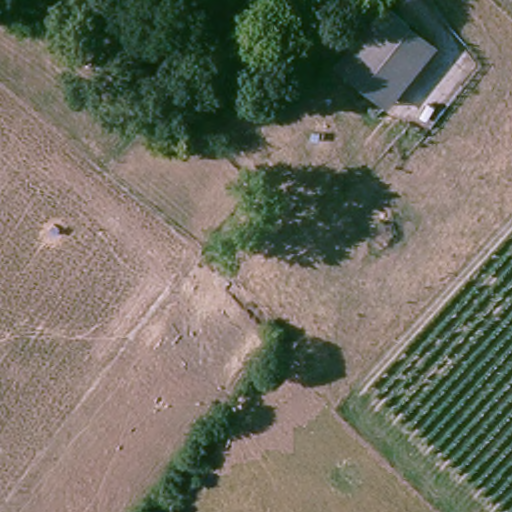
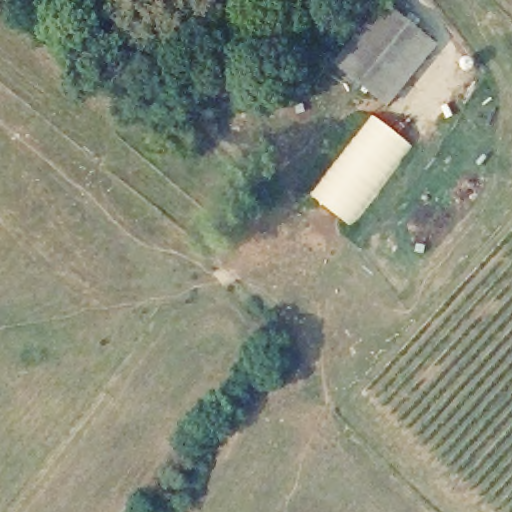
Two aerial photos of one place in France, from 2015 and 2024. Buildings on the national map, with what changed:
unchanged [(383,1),(433,41),(390,100),(341,60),(383,1)]
new [(311,195),(371,114),(414,146),(351,227),(311,195)]

